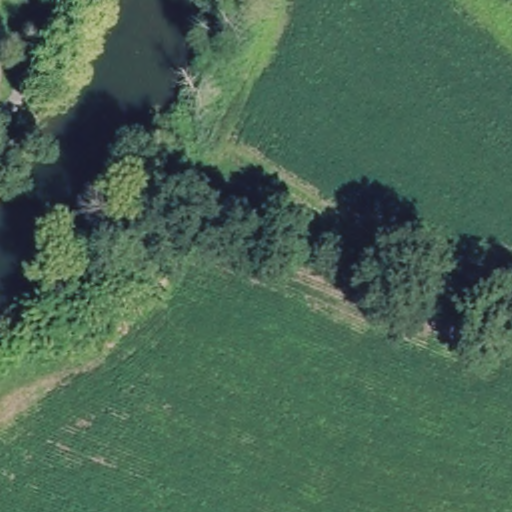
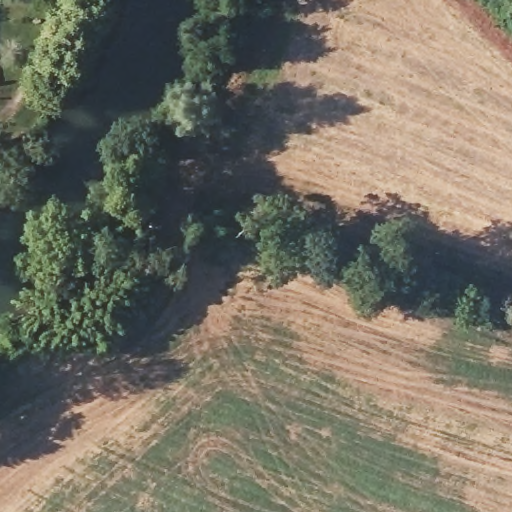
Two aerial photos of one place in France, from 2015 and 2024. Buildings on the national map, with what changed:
[]

